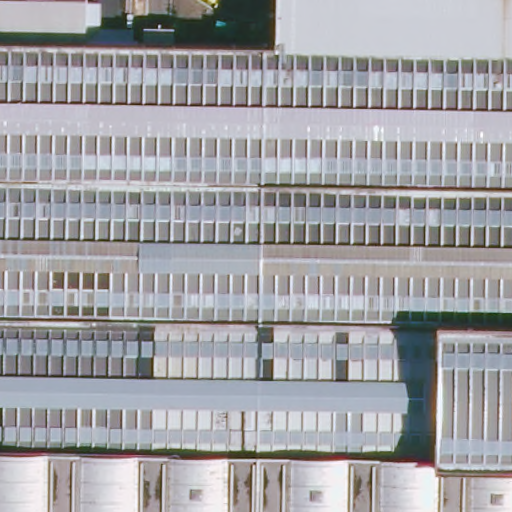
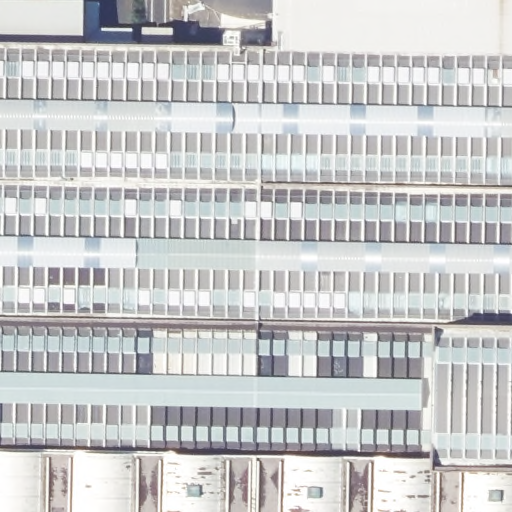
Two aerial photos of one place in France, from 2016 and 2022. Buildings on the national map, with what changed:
unchanged [(272,41),(273,0),(512,0),(512,512),(0,512),(0,36),(272,41)]

